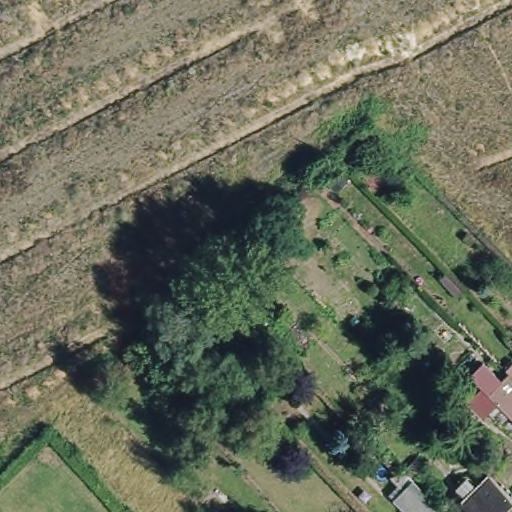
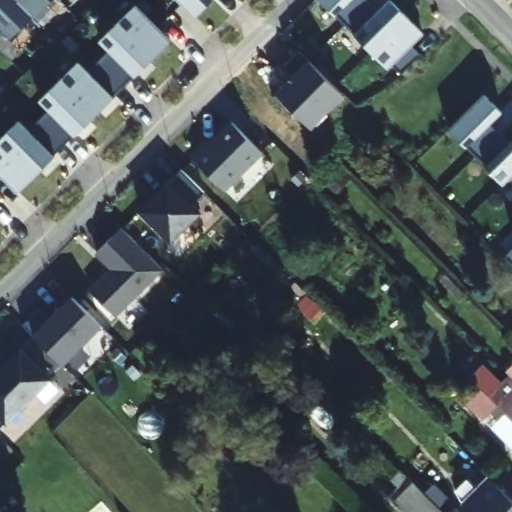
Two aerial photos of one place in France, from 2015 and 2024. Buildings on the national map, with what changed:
new [(17,0),(32,15),(9,37),(2,31),(0,33),(0,0),(17,0)]
new [(48,11),(38,21),(17,0),(46,0),(42,4),(48,11)]
new [(175,0),(213,0),(193,19),(175,0)]
new [(388,0),(393,0),(424,31),(412,45),(420,54),(402,71),(393,64),(390,68),(321,0),(369,0),(379,9),(388,0)]
new [(170,38),(19,188),(0,170),(0,139),(21,118),(30,127),(49,108),(41,99),(80,60),(89,69),(109,47),(101,40),(136,4),(170,38)]
new [(344,96),(313,129),(275,91),(294,74),(286,65),(301,50),(309,60),(344,96)]
new [(490,125),(508,141),(512,137),(512,175),(505,183),(448,129),(484,91),(504,110),(490,125)]
new [(263,153),(227,192),(195,159),(232,121),(263,153)]
new [(204,192),(195,201),(202,209),(172,243),(141,212),(170,182),(183,170),(204,192)]
new [(162,271),(118,315),(91,290),(111,270),(96,254),(122,228),(162,271)]
new [(506,256),(512,248),(512,263),(506,256)]
new [(39,309),(50,320),(73,297),(101,325),(62,364),(23,325),(39,309)]
new [(51,377),(7,423),(0,428),(0,367),(22,346),(51,377)]
unchanged [(498,407),(488,417),(472,401),(483,391),(471,379),(484,366),(503,385),(511,377),(512,378),(512,421),(510,419),(498,407)]
unchanged [(512,367),(512,375),(508,371),(512,367)]
unchanged [(491,477),(501,487),(512,499),(512,512),(472,512),(464,504),(491,477)]
unchanged [(395,502),(415,483),(418,486),(431,499),(444,512),(406,512),(395,502)]

